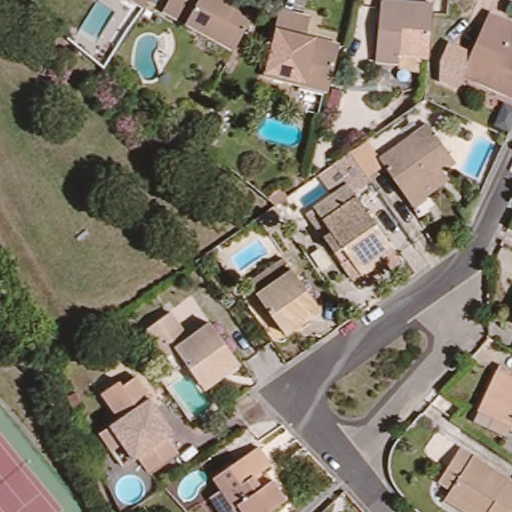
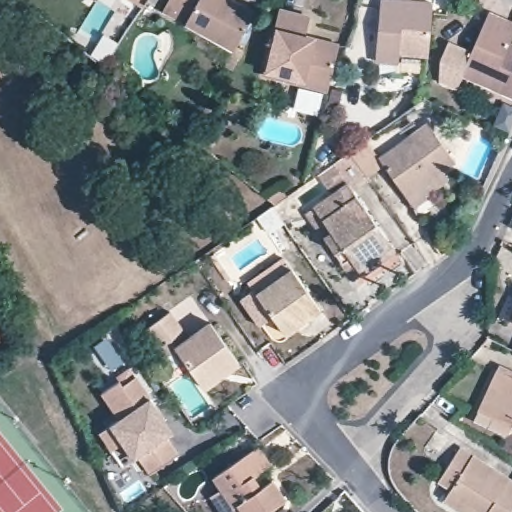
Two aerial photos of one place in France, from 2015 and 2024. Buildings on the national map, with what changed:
unchanged [(148,0),(144,6),(134,0),(148,0)]
unchanged [(162,5),(165,0),(244,0),(255,6),(234,44),(162,5)]
unchanged [(402,62),(380,59),(385,0),(412,0),(438,2),(437,15),(434,55),(403,53),(402,62)]
unchanged [(335,85),(268,69),(285,4),(315,11),(310,31),(347,40),(335,85)]
unchanged [(466,73),(461,86),(444,79),(446,56),(454,39),(476,49),(492,13),(512,21),(512,93),(466,73)]
unchanged [(429,190),(416,199),(386,153),(432,119),(458,157),(447,165),(453,174),(429,190)]
unchanged [(333,237),(317,213),(325,207),(343,195),(329,173),(344,163),(360,151),(385,187),(368,198),(400,244),(405,253),(390,262),(372,274),(363,280),(345,253),(333,237)]
unchanged [(274,205),(287,226),(270,238),(257,217),(274,205)]
unchanged [(284,320),(261,288),(296,265),(324,306),(316,312),(290,329),(284,320)]
unchanged [(199,376),(185,356),(174,364),(165,351),(146,324),(170,307),(190,334),(211,319),(239,359),(229,367),(204,383),(199,376)]
unchanged [(483,409),(500,370),(512,375),(512,422),(483,409)]
unchanged [(104,429),(115,421),(126,413),(108,387),(124,375),(128,382),(142,372),(155,392),(169,413),(176,428),(170,432),(182,448),(155,467),(144,449),(137,454),(126,462),(104,429)]
unchanged [(455,486),(458,483),(445,475),(465,444),(512,473),(512,512),(479,512),(450,494),(455,486)]
unchanged [(214,498),(228,489),(219,477),(262,448),(275,465),(257,477),(267,489),(279,481),(290,499),(270,512),(223,512),(214,498)]

